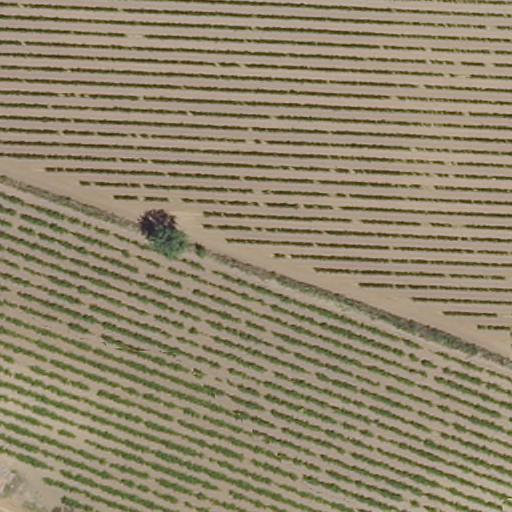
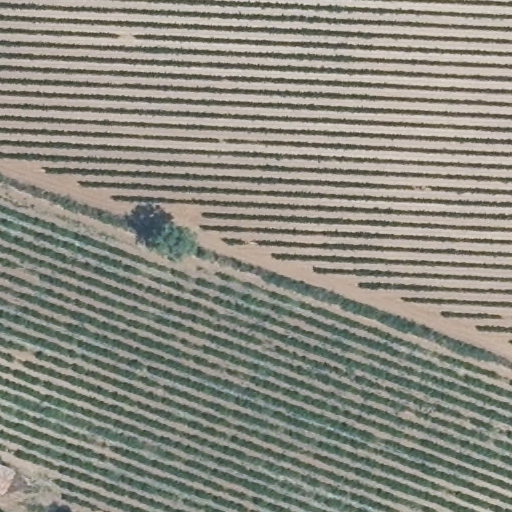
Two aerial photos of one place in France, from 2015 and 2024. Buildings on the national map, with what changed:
unchanged [(12,500),(0,496),(0,464),(24,469),(12,500)]

